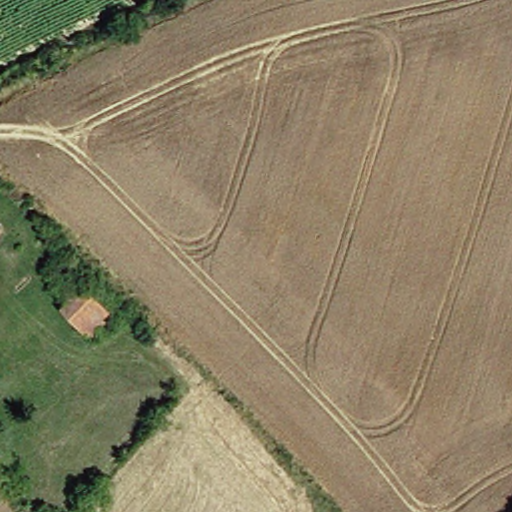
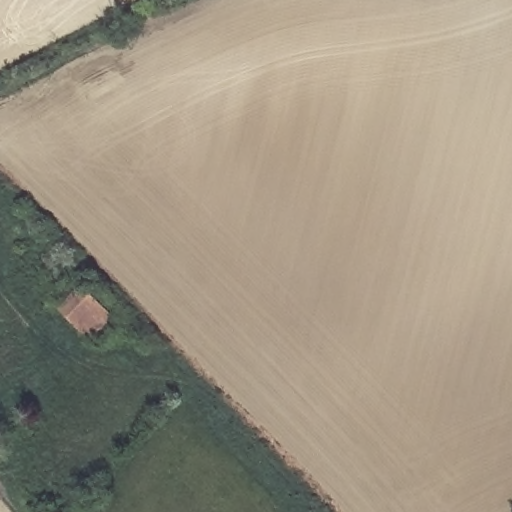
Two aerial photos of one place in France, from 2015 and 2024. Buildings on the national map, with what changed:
unchanged [(69,320),(56,306),(78,285),(104,312),(93,325),(83,335),(69,320)]

